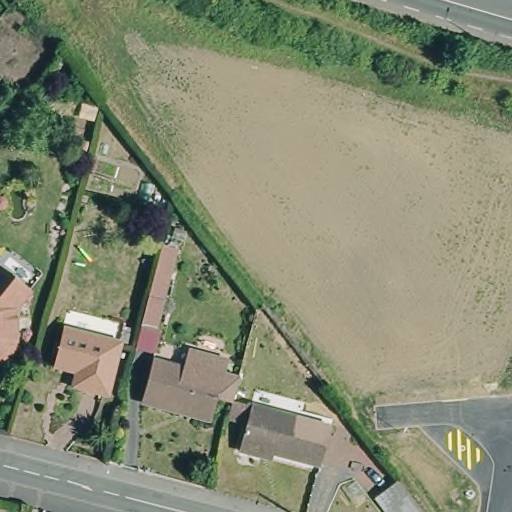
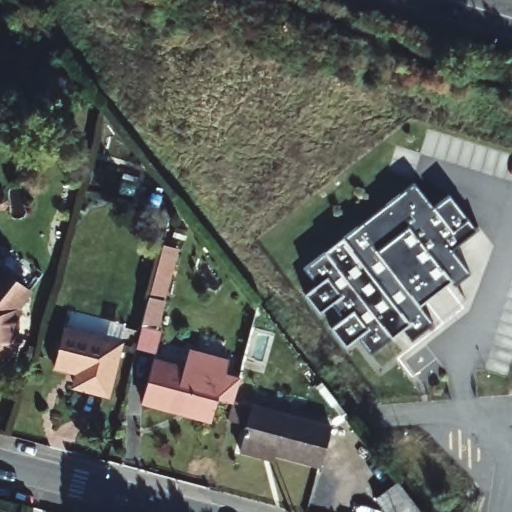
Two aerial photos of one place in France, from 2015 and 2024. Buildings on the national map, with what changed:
new [(433,206),(448,195),(476,230),(451,249),(468,271),(453,284),(450,280),(418,305),(431,321),(410,339),(402,329),(370,353),(358,335),(345,345),(331,326),(341,317),(332,303),(321,311),(305,291),(315,285),(305,269),(414,184),(433,206)]
unchanged [(10,349),(9,351),(6,357),(1,362),(0,363),(0,276),(24,293),(12,310),(10,349)]
unchanged [(157,337),(142,332),(150,303),(166,307),(157,337)]
unchanged [(115,342),(100,393),(68,384),(73,368),(48,361),(59,327),(115,342)]
unchanged [(177,416),(128,403),(140,362),(171,371),(176,353),(193,358),(177,416)]
unchanged [(206,402),(200,423),(177,416),(193,358),(217,365),(215,377),(231,382),(225,404),(223,408),(206,402)]
unchanged [(256,449),(235,443),(248,397),(326,419),(316,457),(258,442),(256,449)]
unchanged [(377,512),(366,499),(388,482),(412,512),(377,512)]

